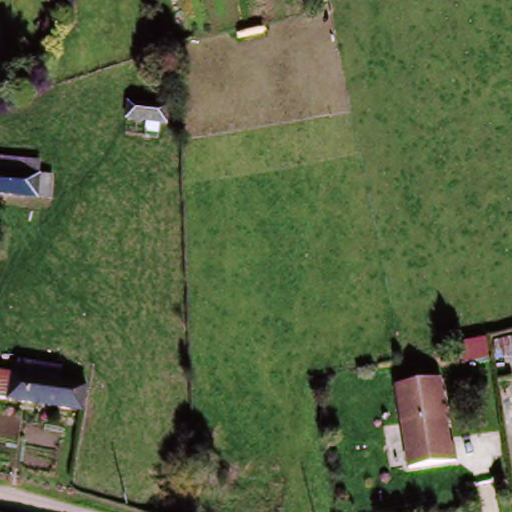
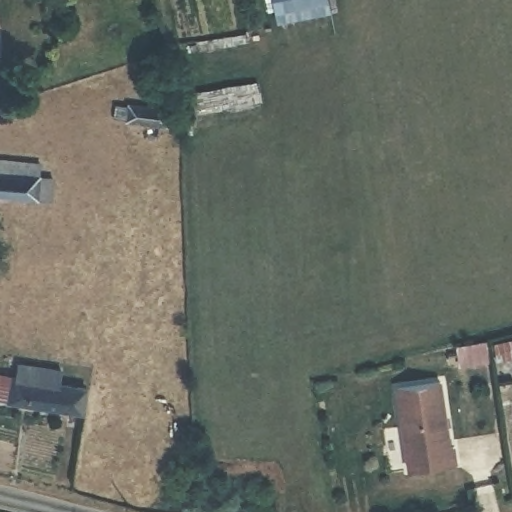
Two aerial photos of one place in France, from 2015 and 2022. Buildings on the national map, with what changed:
new [(278,23),(273,0),(330,0),(333,12),(278,23)]
unchanged [(125,105),(160,111),(157,129),(121,124),(125,105)]
unchanged [(45,209),(0,205),(0,169),(47,174),(47,186),(57,187),(55,210),(45,209)]
unchanged [(455,341),(486,333),(490,353),(457,356),(455,341)]
unchanged [(497,340),(512,337),(512,356),(500,358),(497,340)]
unchanged [(81,420),(67,418),(0,409),(0,385),(12,386),(15,371),(56,377),(53,392),(71,395),(85,397),(81,420)]
unchanged [(397,386),(440,379),(451,445),(455,444),(457,460),(410,468),(397,386)]

